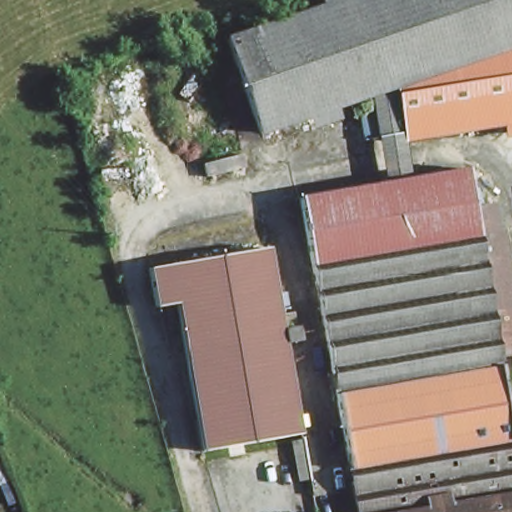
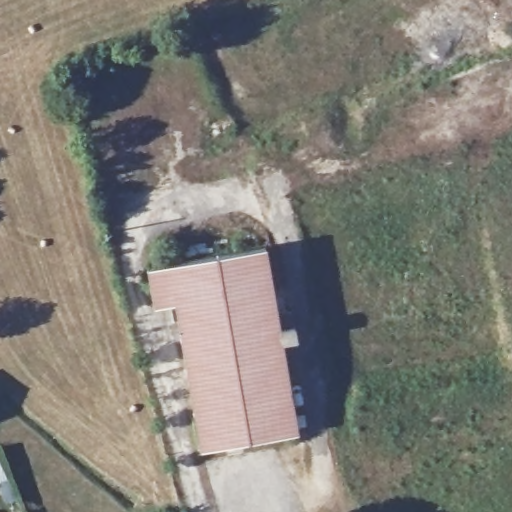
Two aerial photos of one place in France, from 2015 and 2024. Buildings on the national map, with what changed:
demolished [(471,60),(384,89),(357,99),(255,133),(220,40),(310,7),(330,0),(505,0),(512,21),(512,46),(471,60)]
demolished [(307,0),(330,0),(310,7),(307,0)]
demolished [(485,132),(471,60),(512,46),(512,126),(485,132)]
demolished [(485,132),(406,150),(384,89),(471,60),(485,132)]
demolished [(384,89),(406,150),(414,182),(373,189),(357,99),(384,89)]
demolished [(373,189),(414,182),(469,172),(481,230),(501,225),(512,277),(512,338),(505,340),(510,363),(512,362),(512,512),(351,512),(293,204),(373,189)]
unchanged [(292,311),(297,340),(283,343),(296,411),(300,435),(290,437),(205,451),(202,452),(193,401),(171,302),(153,305),(146,268),(265,246),(277,314),(292,311)]

